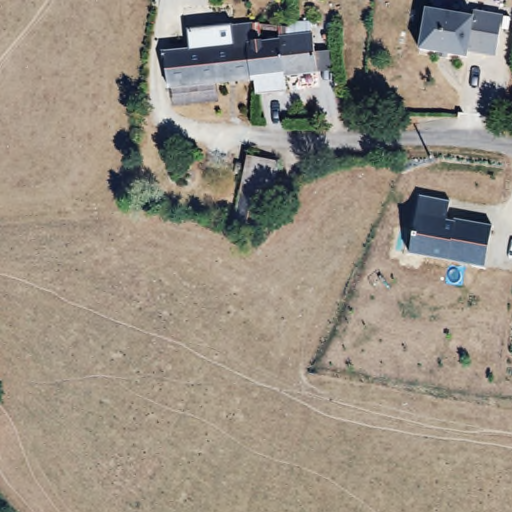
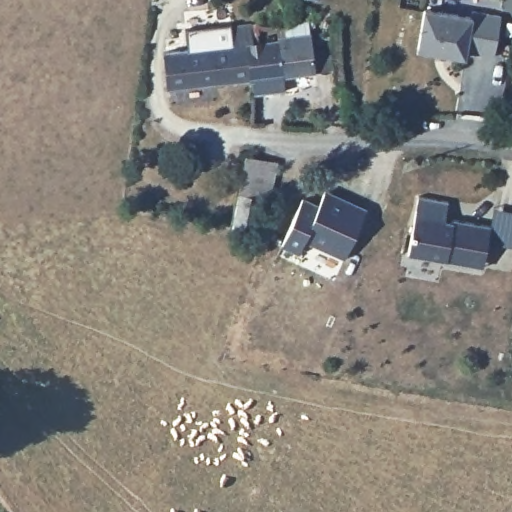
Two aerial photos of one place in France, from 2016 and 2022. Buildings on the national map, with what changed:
unchanged [(465,24),(467,12),(494,17),(487,59),(461,53),(460,61),(412,53),(418,16),(465,24)]
unchanged [(249,101),(249,86),(167,92),(164,56),(231,50),(230,33),(243,32),(250,32),(251,46),(251,49),(254,49),(275,46),(279,45),(285,40),(304,36),(312,74),(291,76),(279,81),(280,96),(249,101)]
unchanged [(235,225),(242,190),(252,146),(284,154),(279,182),(277,190),(276,190),(273,190),(268,194),(261,230),(235,225)]
new [(304,239),(300,252),(283,244),(303,197),(318,203),(326,188),(366,208),(344,257),(304,239)]
unchanged [(463,262),(409,252),(419,194),(448,199),(445,216),(491,223),(488,239),(484,265),(463,262)]
new [(488,239),(491,223),(494,206),(512,210),(512,246),(488,241),(488,239)]

